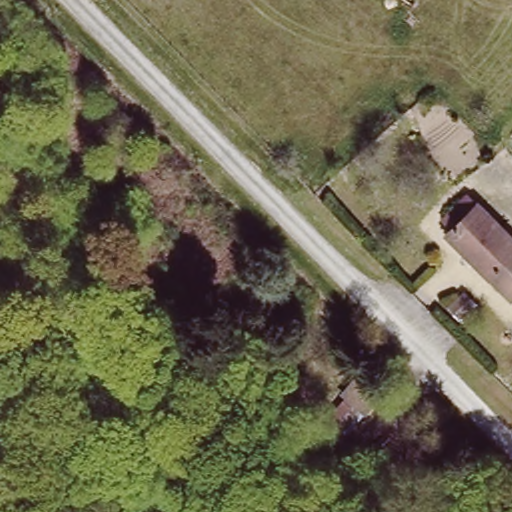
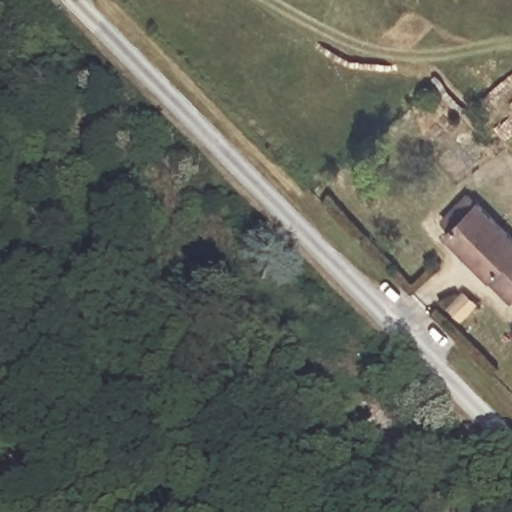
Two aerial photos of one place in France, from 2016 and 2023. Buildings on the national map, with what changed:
unchanged [(512,237),(512,290),(509,293),(447,231),(478,202),(512,237)]
unchanged [(327,442),(314,425),(341,403),(337,397),(365,370),(385,396),(362,421),(355,415),(327,442)]

